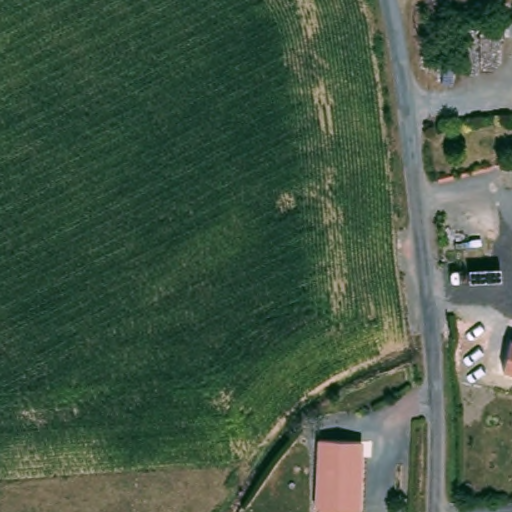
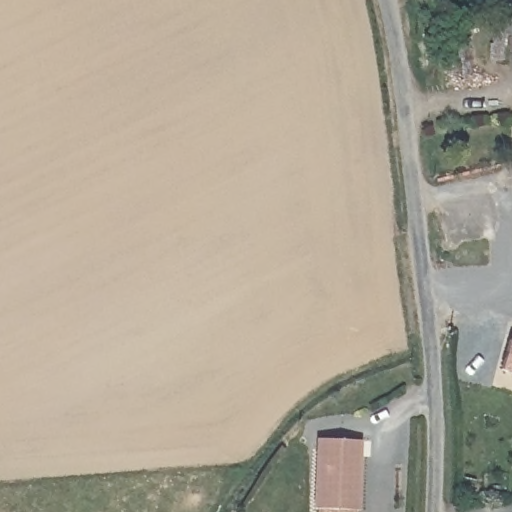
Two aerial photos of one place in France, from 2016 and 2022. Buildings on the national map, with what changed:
unchanged [(511,339),(512,340),(512,372),(504,369),(511,339)]
unchanged [(317,441),(363,441),(361,512),(316,512),(317,441)]

